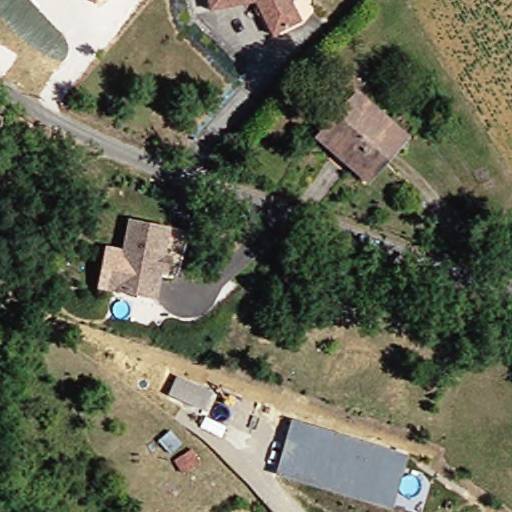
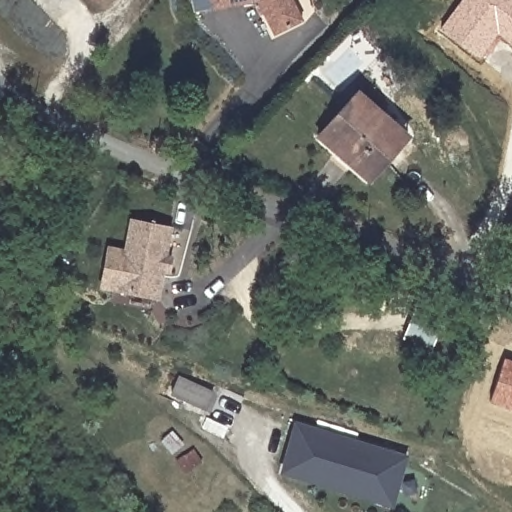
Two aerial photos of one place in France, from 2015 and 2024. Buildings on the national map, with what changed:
unchanged [(94,5),(89,0),(98,0),(94,5)]
unchanged [(273,34),(255,1),(211,10),(209,0),(291,0),(301,20),(273,34)]
new [(479,59),(440,29),(460,0),(512,0),(512,44),(497,34),(479,59)]
unchanged [(315,136),(352,92),(370,108),(402,137),(396,145),(365,180),(347,164),(331,151),(315,136)]
unchanged [(159,268),(153,297),(114,288),(130,217),(169,226),(162,255),(168,256),(165,270),(159,268)]
new [(403,338),(410,321),(437,331),(430,348),(403,338)]
new [(503,358),(512,361),(512,411),(489,403),(503,358)]
unchanged [(181,377),(211,392),(204,406),(174,390),(181,377)]
unchanged [(376,500),(328,485),(286,472),(294,446),(299,427),(405,460),(398,482),(391,504),(376,500)]

